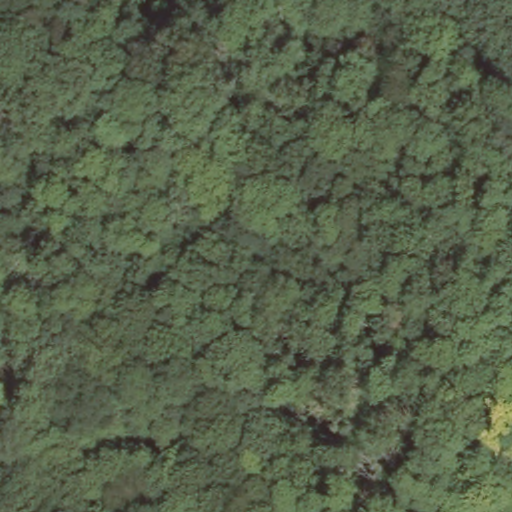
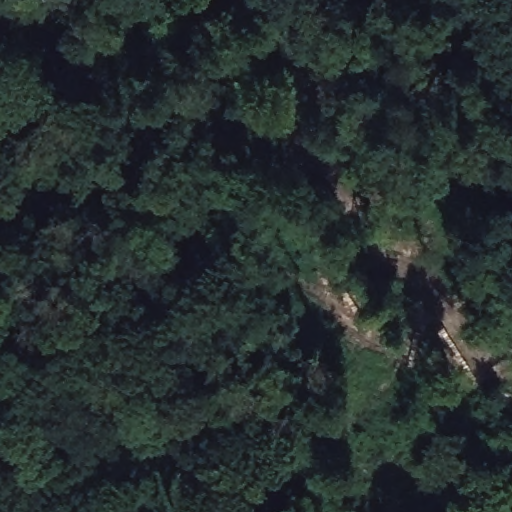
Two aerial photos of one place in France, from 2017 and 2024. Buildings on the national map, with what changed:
unchanged [(512,164),(512,172),(500,180),(485,159),(499,147),(512,164)]

